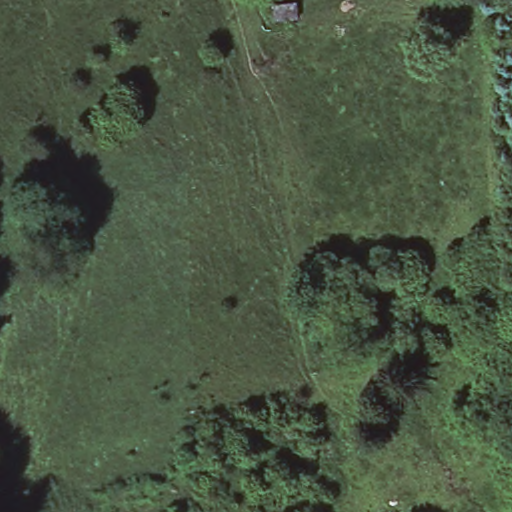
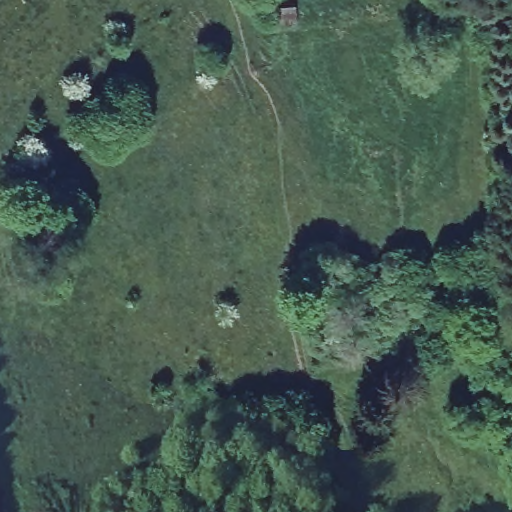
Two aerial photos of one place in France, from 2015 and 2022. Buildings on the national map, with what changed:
unchanged [(297,0),(299,7),(272,11),(271,0),(297,0)]
unchanged [(30,211),(35,203),(37,205),(37,204),(47,221),(35,235),(30,211)]

